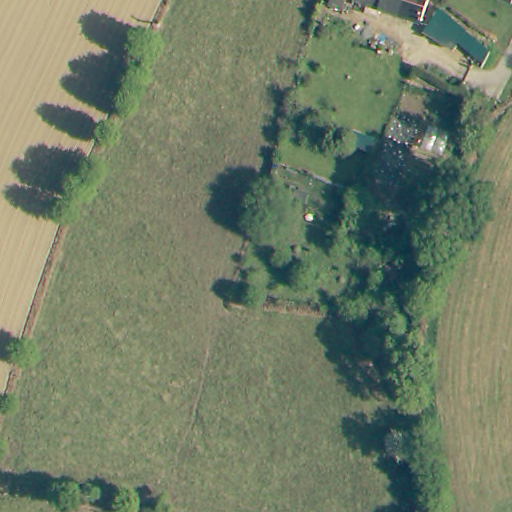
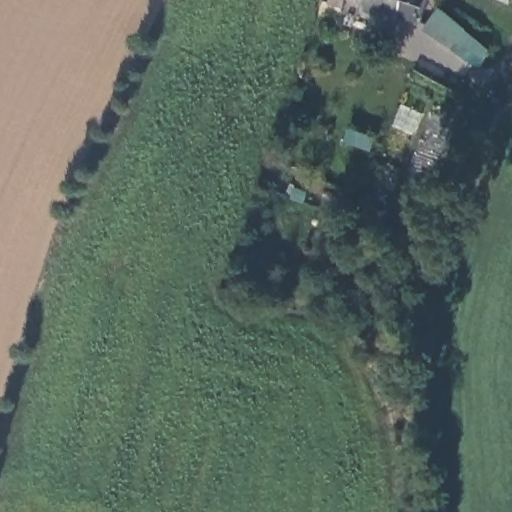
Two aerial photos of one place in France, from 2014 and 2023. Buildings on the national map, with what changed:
unchanged [(341,9),(327,4),(329,0),(344,0),(341,9)]
unchanged [(420,21),(392,13),(379,9),(377,16),(363,12),(366,4),(354,0),(427,0),(420,21)]
unchanged [(469,30),(454,46),(425,26),(444,6),(469,30)]

